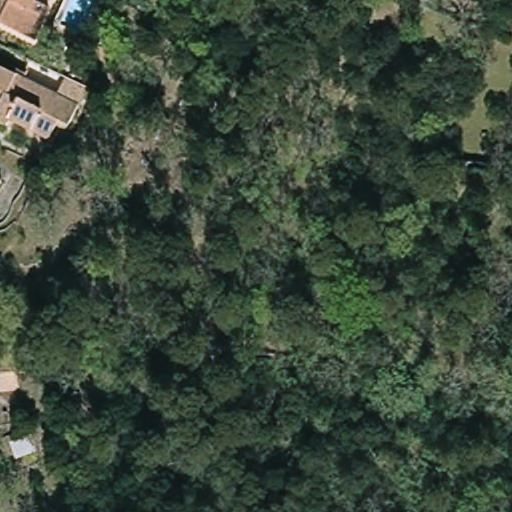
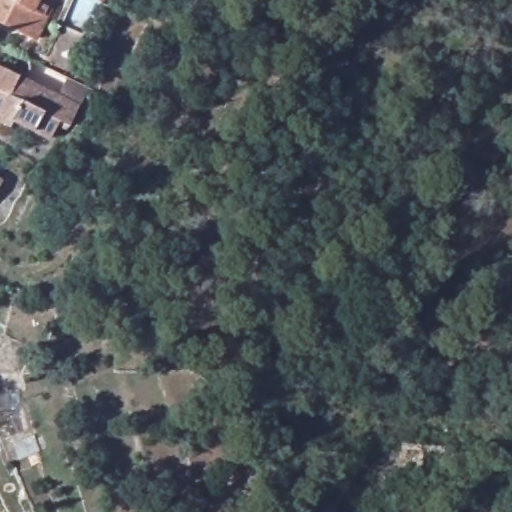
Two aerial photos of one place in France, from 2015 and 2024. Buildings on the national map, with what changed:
unchanged [(39,41),(0,20),(0,0),(43,0),(56,7),(39,41)]
unchanged [(91,108),(83,103),(70,127),(60,122),(50,141),(13,120),(10,127),(0,121),(0,64),(61,97),(64,91),(65,91),(70,80),(98,94),(96,97),(91,108)]
unchanged [(0,191),(0,181),(5,184),(0,191)]
unchanged [(37,435),(44,452),(23,462),(15,444),(37,435)]

